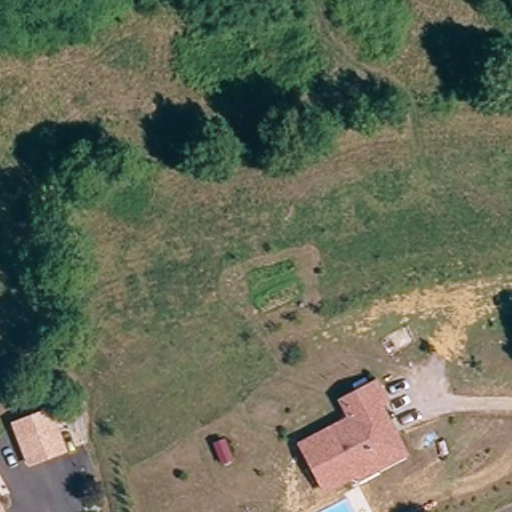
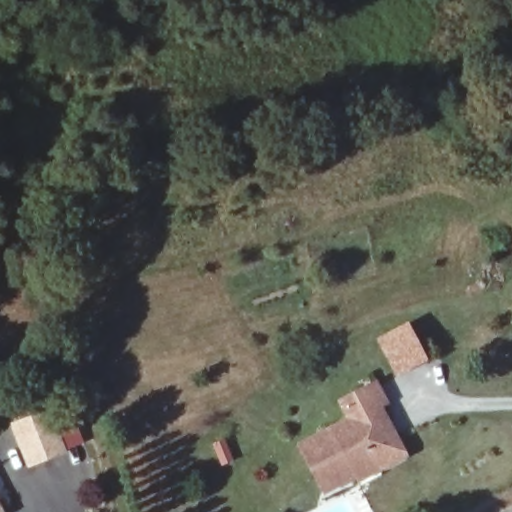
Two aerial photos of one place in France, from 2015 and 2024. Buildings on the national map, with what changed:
new [(409,322),(429,360),(397,377),(376,339),(409,322)]
unchanged [(336,489),(313,453),(360,422),(350,406),(382,385),(393,402),(387,406),(398,423),(392,427),(395,432),(405,434),(413,447),(416,452),(374,479),(371,474),(353,485),(339,494),(336,489)]
unchanged [(45,458),(22,465),(9,419),(50,407),(56,428),(63,452),(45,458)]

